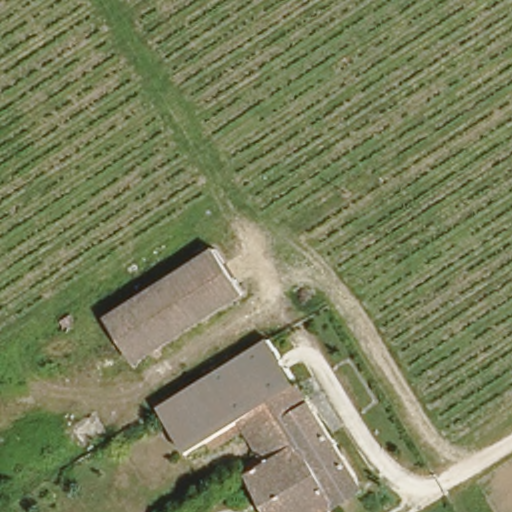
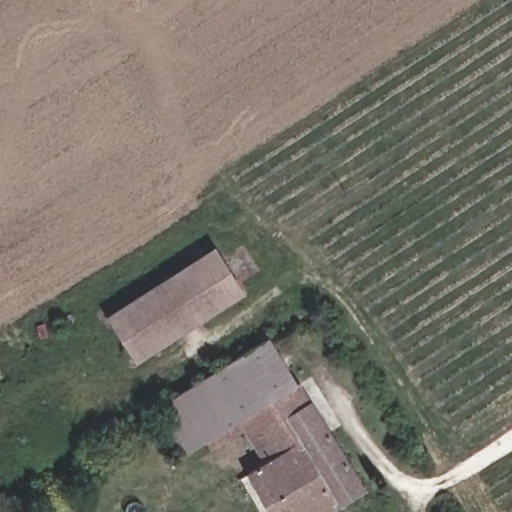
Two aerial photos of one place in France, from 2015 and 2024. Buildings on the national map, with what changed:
unchanged [(138,354),(113,308),(220,243),(246,286),(138,354)]
unchanged [(270,331),(358,479),(307,512),(275,512),(248,467),(261,459),(239,416),(189,447),(163,399),(270,331)]

